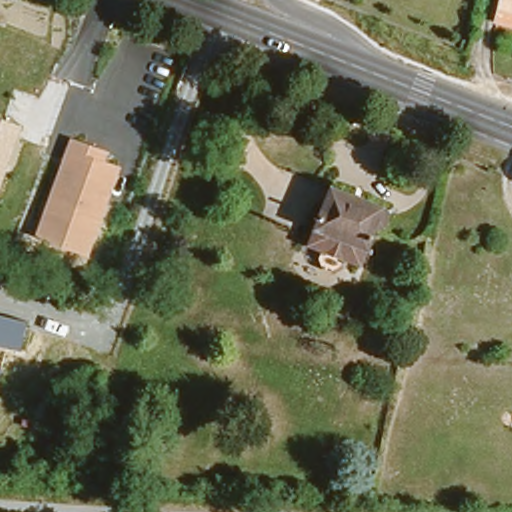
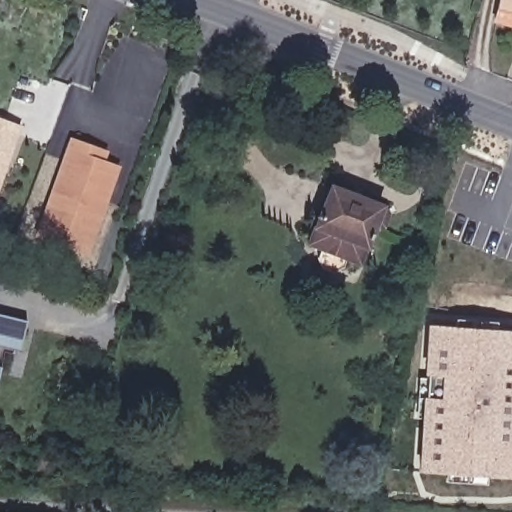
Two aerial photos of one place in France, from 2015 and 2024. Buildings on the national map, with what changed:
unchanged [(496,15),(500,0),(512,0),(512,19),(496,15)]
unchanged [(0,118),(23,126),(0,191),(0,118)]
unchanged [(108,150),(107,160),(121,166),(89,256),(38,238),(71,138),(108,150)]
unchanged [(327,181),(378,201),(377,203),(379,203),(381,204),(384,206),(378,222),(374,224),(374,225),(369,223),(363,242),(345,236),(340,251),(335,249),(332,258),(322,254),(326,245),(322,244),(327,230),(311,224),(327,181)]
unchanged [(356,259),(343,256),(340,265),(332,269),(320,265),(316,257),(319,247),(305,241),(311,224),(327,230),(322,244),(326,245),(322,254),(332,258),(335,249),(340,251),(345,236),(363,242),(356,259)]
unchanged [(0,344),(0,314),(27,321),(20,349),(0,344)]
new [(424,398),(438,399),(439,377),(425,376),(429,325),(512,331),(512,479),(419,472),(424,398)]
unchanged [(0,373),(0,368),(1,368),(0,373)]

